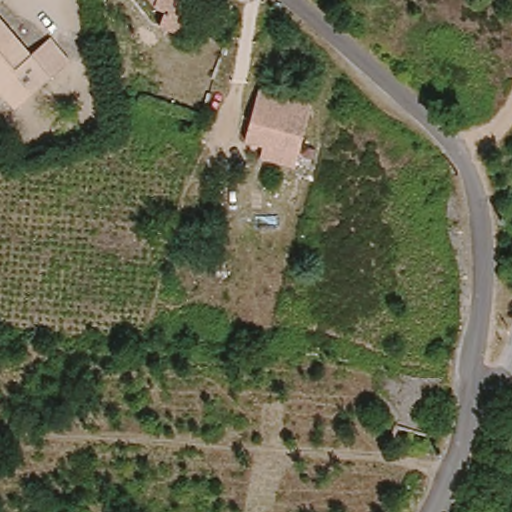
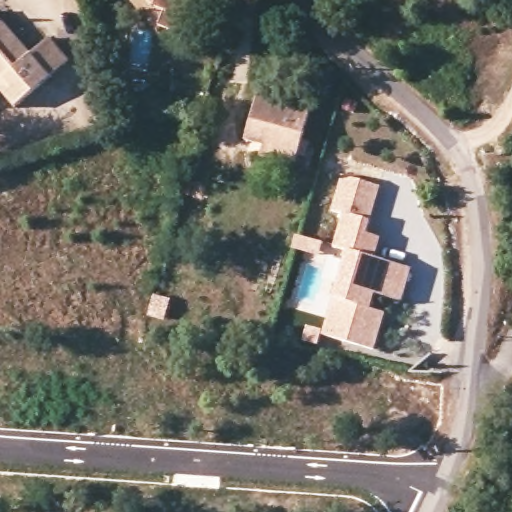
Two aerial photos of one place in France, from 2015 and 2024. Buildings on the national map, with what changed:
unchanged [(151,7),(146,0),(192,0),(182,33),(155,23),(159,12),(151,7)]
unchanged [(10,110),(0,97),(0,21),(29,57),(44,45),(49,41),(67,65),(10,110)]
unchanged [(260,143),(246,140),(256,94),(307,104),(291,168),(257,159),(260,143)]
new [(370,220),(368,233),(381,236),(374,256),(411,267),(403,301),(376,292),(372,307),(385,312),(375,352),(322,337),(333,297),(346,250),(333,246),(342,212),(330,209),(339,173),(380,184),(370,220)]
new [(295,233),(322,241),(319,252),(291,244),(295,233)]
unchanged [(420,447),(381,438),(386,421),(424,430),(420,447)]

